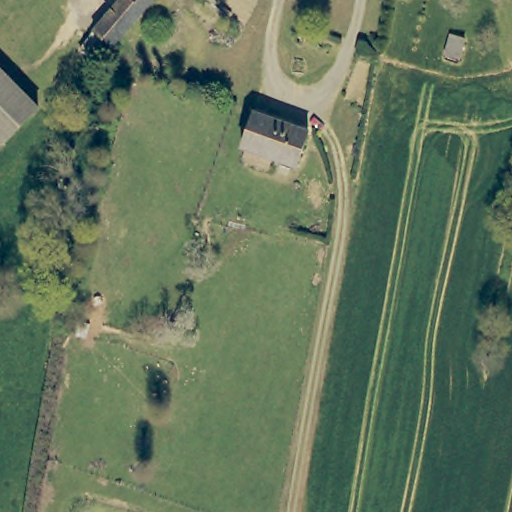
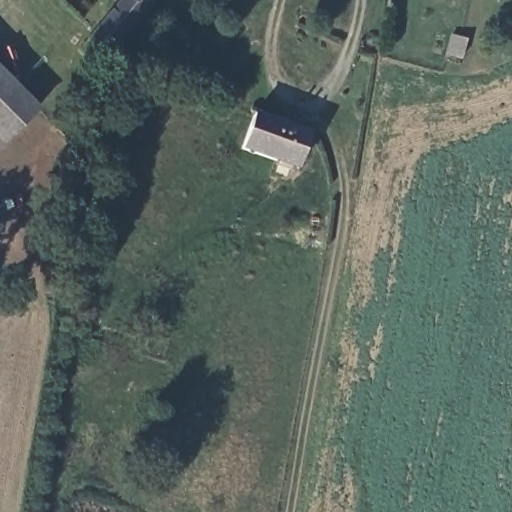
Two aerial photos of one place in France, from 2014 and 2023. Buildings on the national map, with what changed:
unchanged [(125,0),(138,0),(148,8),(115,45),(101,63),(84,46),(99,29),(125,0)]
unchanged [(148,8),(138,0),(155,0),(148,8)]
unchanged [(0,84),(31,115),(25,121),(0,146),(0,84)]
unchanged [(233,147),(245,111),(300,130),(288,165),(233,147)]

